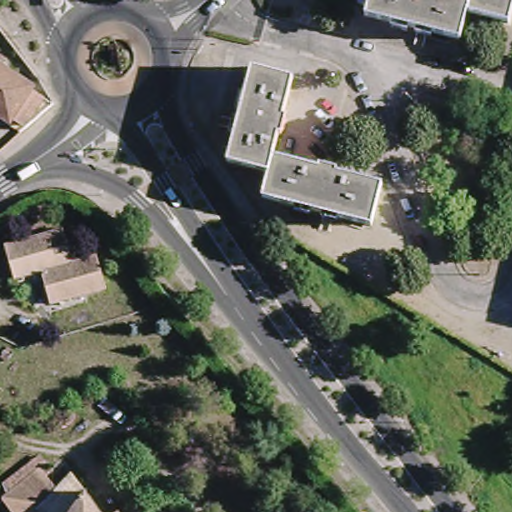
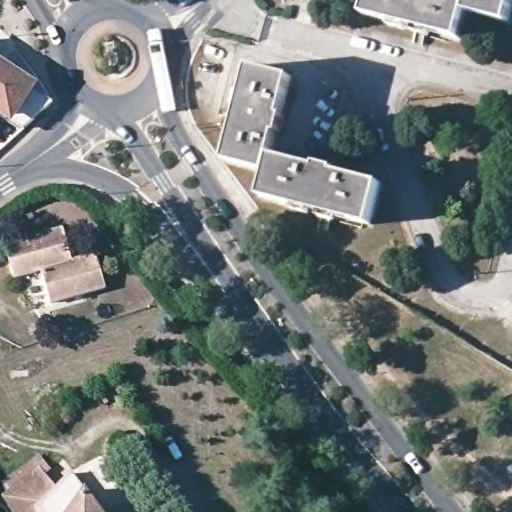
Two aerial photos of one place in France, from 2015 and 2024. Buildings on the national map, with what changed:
unchanged [(463,40),(368,19),(374,0),(473,0),(512,0),(512,20),(510,25),(469,15),(463,40)]
unchanged [(0,127),(0,72),(56,110),(27,137),(22,141),(0,127)]
unchanged [(322,174),(323,171),(344,177),(344,180),(385,190),(374,232),(267,204),(273,180),(232,169),(255,75),(297,86),(288,125),(291,125),(286,144),(283,144),(279,163),(322,174)]
unchanged [(12,282),(3,248),(64,233),(72,265),(95,260),(104,293),(47,307),(40,276),(12,282)]
unchanged [(0,506),(0,495),(37,468),(52,485),(70,474),(85,495),(98,512),(5,512),(0,506)]
unchanged [(113,510),(114,512),(110,512),(113,510)]

